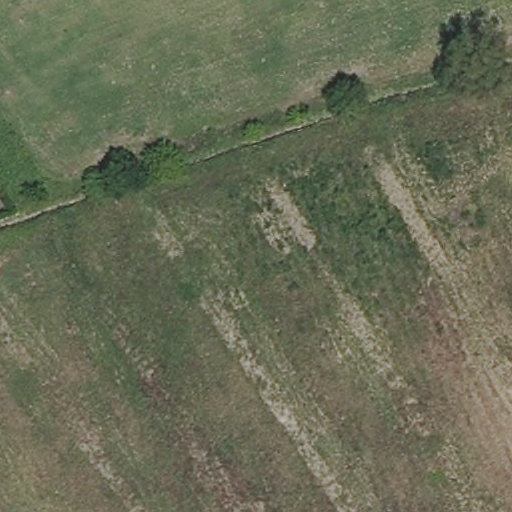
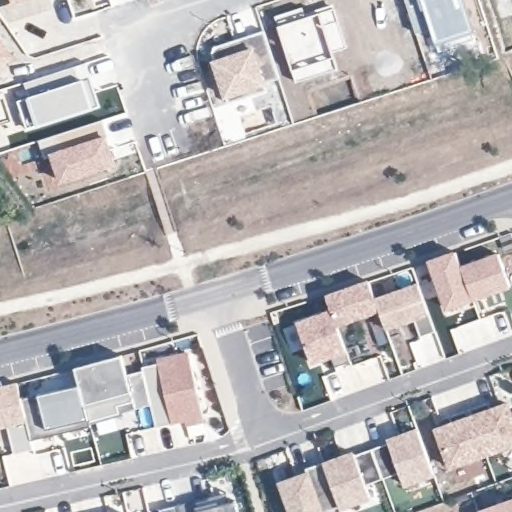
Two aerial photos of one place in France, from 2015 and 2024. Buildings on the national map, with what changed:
new [(11,0),(24,0),(13,4),(11,0)]
new [(109,0),(131,0),(111,6),(109,0)]
new [(437,51),(430,32),(417,36),(404,0),(463,0),(475,38),(437,51)]
new [(303,6),(306,15),(333,5),(348,48),(334,53),(338,68),(295,82),(274,15),(303,6)]
new [(0,16),(0,14),(1,15),(0,16)]
new [(214,58),(212,47),(263,31),(278,79),(268,83),(270,89),(233,101),(225,104),(211,59),(214,58)]
new [(0,66),(0,36),(15,58),(0,66)]
new [(24,83),(72,68),(75,74),(59,80),(61,85),(89,76),(101,108),(27,130),(17,100),(28,96),(24,83)]
new [(108,137),(117,165),(60,184),(51,158),(46,160),(39,140),(103,120),(108,137)]
unchanged [(0,209),(0,199),(5,206),(0,209)]
new [(457,253),(462,268),(474,300),(447,310),(430,262),(457,253)]
new [(499,255),(511,287),(474,300),(462,268),(499,255)]
new [(370,282),(380,309),(338,325),(333,311),(327,296),(370,282)]
new [(333,311),(338,325),(351,362),(336,367),(331,356),(312,363),(298,324),(333,311)]
new [(39,396),(80,388),(76,369),(122,357),(127,375),(144,372),(142,366),(158,363),(157,358),(187,350),(205,422),(187,427),(185,420),(157,427),(152,406),(91,424),(91,427),(32,441),(21,399),(39,396)]
new [(21,399),(32,441),(34,450),(15,454),(8,427),(0,429),(0,387),(17,383),(21,399)]
new [(490,403),(500,399),(502,406),(508,404),(512,414),(512,445),(500,450),(500,449),(486,454),(470,409),(490,402),(490,403)]
new [(441,421),(450,417),(450,416),(470,409),(486,454),(472,459),(472,460),(451,468),(436,429),(443,427),(441,421)]
new [(390,443),(389,441),(419,430),(435,474),(405,486),(400,474),(384,480),(373,449),(390,443)]
new [(355,453),(356,455),(373,449),(384,480),(367,485),(372,498),(341,509),(340,507),(325,464),(355,453)]
new [(308,474),(306,469),(324,463),(325,464),(340,507),(327,512),(291,512),(281,484),(308,474)]
new [(161,509),(228,494),(229,502),(235,500),(238,512),(161,512),(161,509)]
new [(512,503),(512,512),(486,512),(512,503)]

